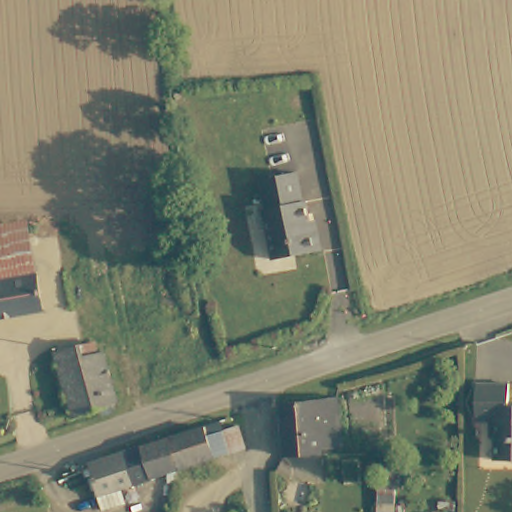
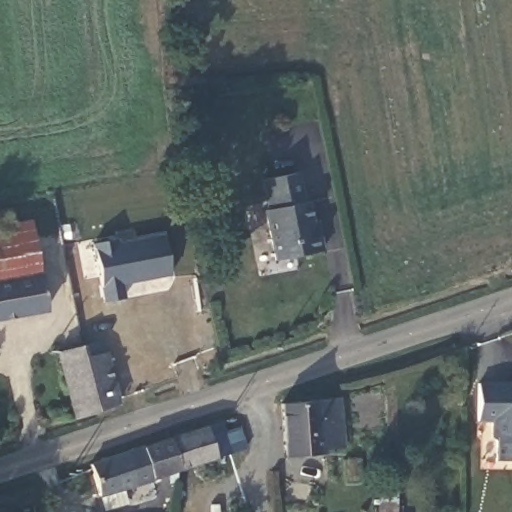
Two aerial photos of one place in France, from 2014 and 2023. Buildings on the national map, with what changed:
unchanged [(301,209),(307,207),(312,231),(320,229),(325,254),(279,263),(268,218),(272,217),(264,183),(295,177),(301,209)]
new [(91,243),(117,239),(118,242),(162,236),(169,275),(122,284),(124,297),(103,301),(101,292),(97,292),(91,243)]
unchanged [(0,242),(34,237),(41,281),(0,288),(0,242)]
unchanged [(0,288),(41,281),(42,281),(48,314),(0,322),(0,288)]
unchanged [(105,411),(85,350),(90,348),(102,345),(105,357),(110,356),(126,404),(105,411)]
unchanged [(105,411),(82,419),(62,358),(85,350),(105,411)]
unchanged [(500,458),(501,440),(492,438),(493,417),(481,417),(483,380),(511,382),(510,402),(512,402),(512,459),(500,458)]
unchanged [(346,448),(290,455),(285,405),(342,398),(346,448)]
unchanged [(218,457),(218,458),(217,457),(183,470),(175,442),(209,430),(224,426),(225,432),(241,427),(248,448),(233,453),(232,453),(218,457)]
unchanged [(137,483),(134,473),(152,467),(146,451),(175,442),(183,470),(137,483)]
unchanged [(137,483),(139,486),(127,490),(131,502),(108,509),(95,468),(129,457),(134,473),(137,483)]
unchanged [(392,477),(405,477),(404,512),(386,512),(386,484),(392,484),(392,477)]

